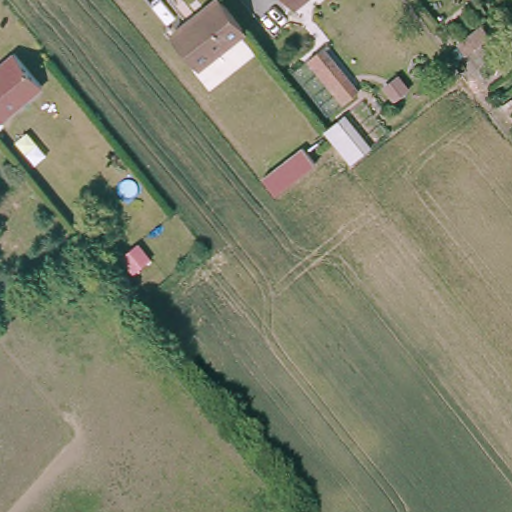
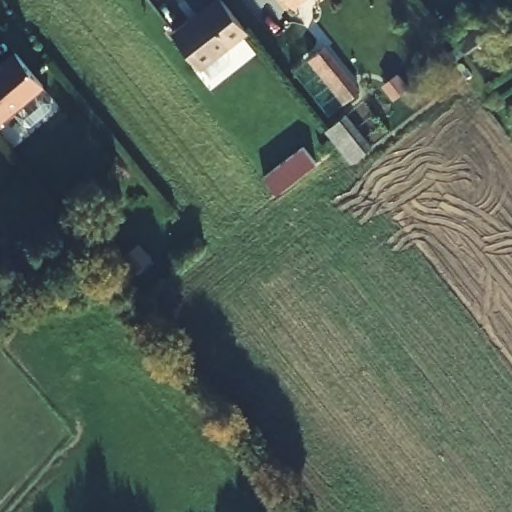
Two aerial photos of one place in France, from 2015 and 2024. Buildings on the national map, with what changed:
unchanged [(173,35),(217,0),(223,0),(247,30),(198,67),(173,35)]
unchanged [(293,0),(304,0),(297,6),(293,0)]
unchanged [(345,103),(310,58),(325,46),(358,91),(345,103)]
unchanged [(0,113),(0,58),(12,48),(39,81),(0,113)]
unchanged [(265,177),(307,141),(319,157),(320,157),(277,193),(265,177)]

